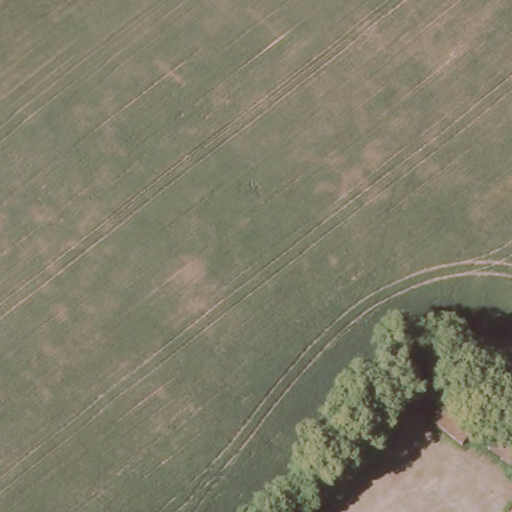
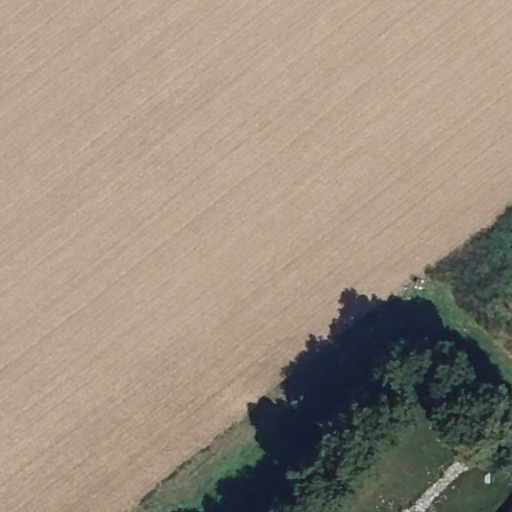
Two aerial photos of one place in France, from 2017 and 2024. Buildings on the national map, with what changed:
unchanged [(477,414),(512,434),(512,468),(465,438),(460,443),(425,416),(427,410),(406,391),(423,370),(477,414)]
unchanged [(512,509),(512,512),(510,512),(512,509)]

